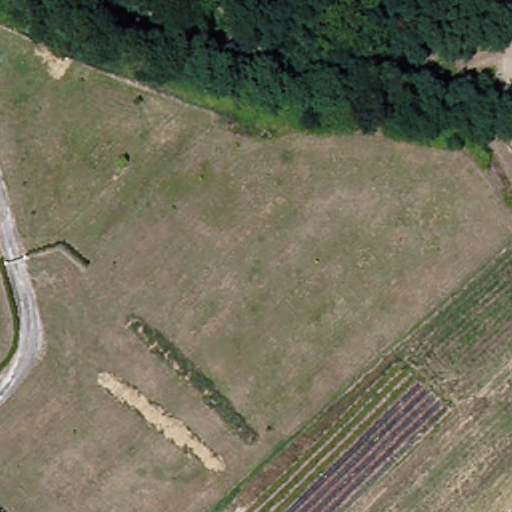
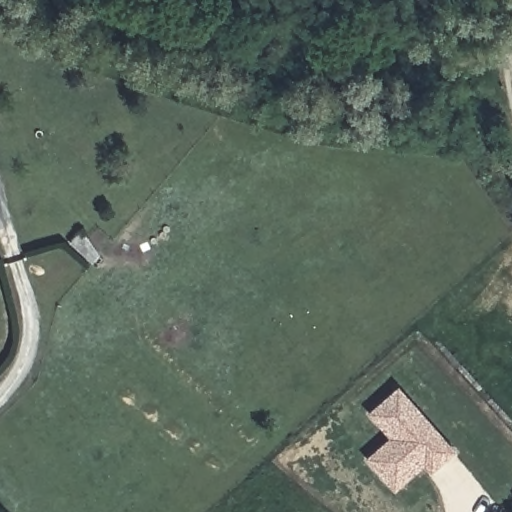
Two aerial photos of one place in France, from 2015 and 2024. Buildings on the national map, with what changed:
new [(425,463),(395,490),(368,459),(392,438),(382,427),(370,413),(398,389),(410,402),(453,451),(438,464),(432,470),(425,463)]

